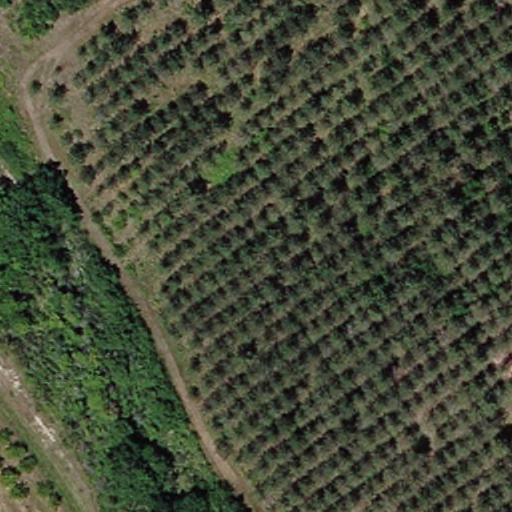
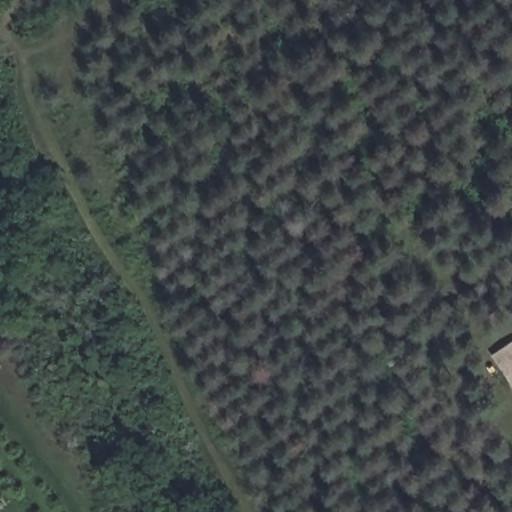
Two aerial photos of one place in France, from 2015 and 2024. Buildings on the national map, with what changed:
new [(492,355),(512,341),(512,385),(492,355)]

